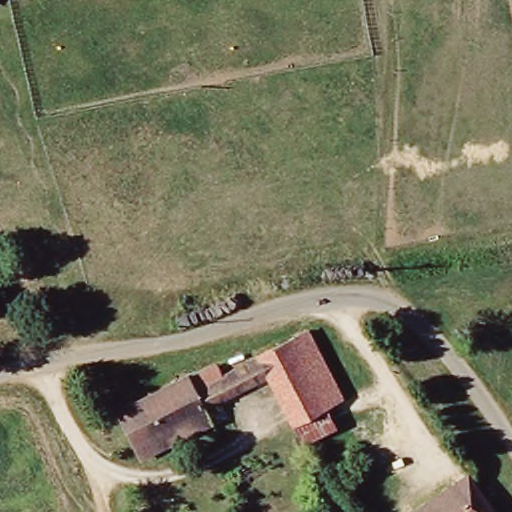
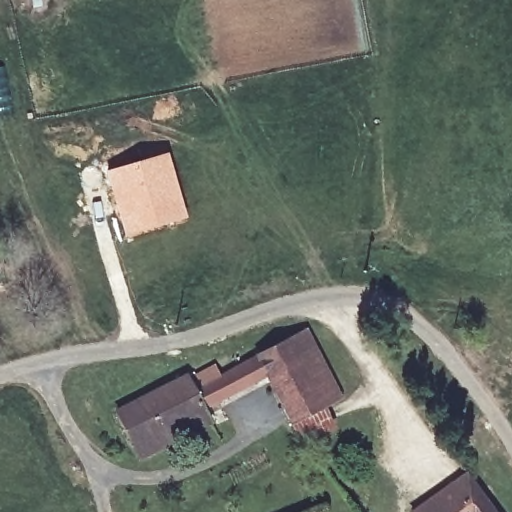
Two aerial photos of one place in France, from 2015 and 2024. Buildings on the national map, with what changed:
new [(167,151),(186,218),(124,238),(104,170),(167,151)]
unchanged [(78,328),(69,333),(63,324),(73,319),(78,328)]
unchanged [(271,379),(205,411),(207,417),(140,449),(120,407),(188,375),(191,381),(217,371),(221,380),(310,336),(345,404),(328,412),(337,432),(306,448),(295,428),(271,379)]
unchanged [(211,415),(215,423),(213,425),(214,429),(145,460),(140,449),(207,417),(211,415)]
unchanged [(495,512),(409,512),(469,473),(495,512)]

